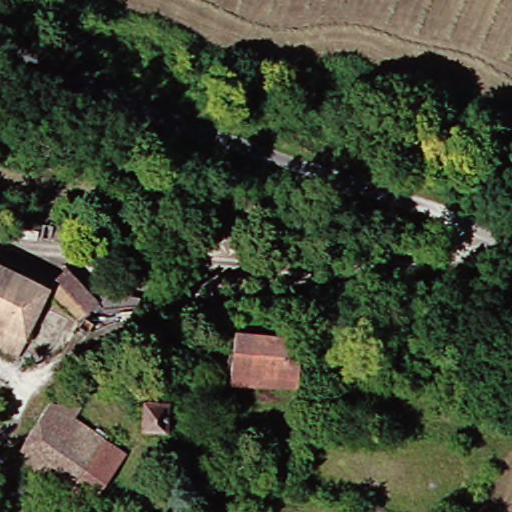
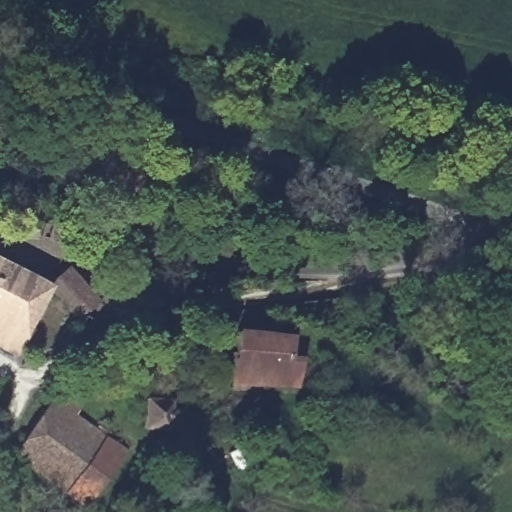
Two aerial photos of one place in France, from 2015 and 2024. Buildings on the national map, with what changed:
unchanged [(49,296),(29,337),(0,323),(0,261),(51,286),(49,296)]
unchanged [(149,313),(123,322),(103,305),(79,325),(49,296),(51,286),(71,272),(100,302),(132,299),(149,313)]
unchanged [(0,348),(0,323),(29,337),(19,357),(0,348)]
unchanged [(239,329),(298,335),(296,354),(310,355),(309,371),(293,370),(236,363),(239,329)]
unchanged [(291,386),(234,382),(236,363),(293,370),(291,386)]
unchanged [(98,462),(74,499),(11,458),(54,398),(60,403),(67,393),(87,408),(80,416),(136,454),(120,477),(98,462)]
unchanged [(183,404),(182,433),(159,432),(161,404),(183,404)]
unchanged [(93,512),(74,499),(98,462),(120,477),(98,512),(93,512)]

